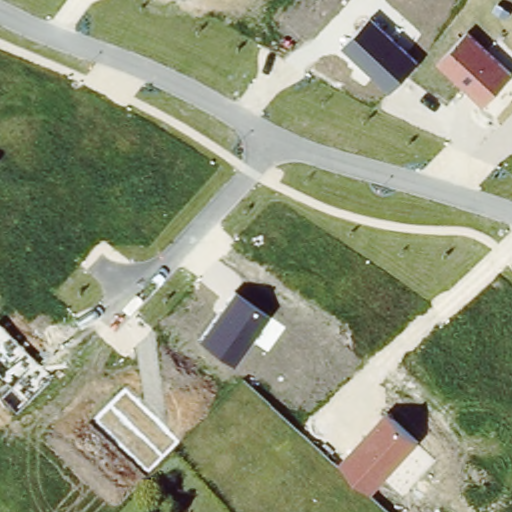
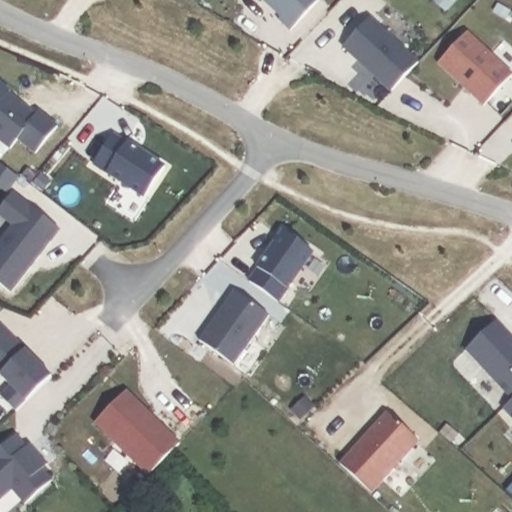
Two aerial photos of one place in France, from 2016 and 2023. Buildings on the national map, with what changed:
new [(290,31),(278,19),(281,17),(263,0),(318,0),(290,31)]
unchanged [(343,45),(371,15),(418,62),(389,89),(343,45)]
unchanged [(439,62),(468,31),(512,74),(483,104),(439,62)]
new [(17,139),(9,149),(0,141),(0,81),(11,90),(9,92),(36,115),(38,110),(57,126),(34,152),(17,139)]
new [(112,134),(125,142),(126,142),(164,166),(144,197),(93,163),(112,134)]
new [(0,217),(0,208),(12,192),(59,229),(35,261),(32,258),(28,265),(30,267),(10,293),(0,285),(0,240),(11,226),(0,217)]
new [(256,269),(256,268),(283,231),(313,252),(278,302),(248,281),(256,269)]
unchanged [(199,340),(233,292),(267,316),(233,363),(199,340)]
new [(497,320),(512,337),(512,400),(465,349),(497,320)]
unchanged [(0,395),(12,385),(0,373),(0,323),(53,375),(15,412),(0,397),(0,395)]
unchanged [(128,391),(181,443),(148,476),(94,423),(128,391)]
new [(503,408),(512,400),(512,418),(503,408)]
unchanged [(340,462),(384,413),(417,442),(371,491),(340,462)]
new [(29,444),(36,452),(48,465),(42,470),(51,481),(24,504),(11,490),(0,499),(0,448),(16,435),(26,447),(29,444)]

